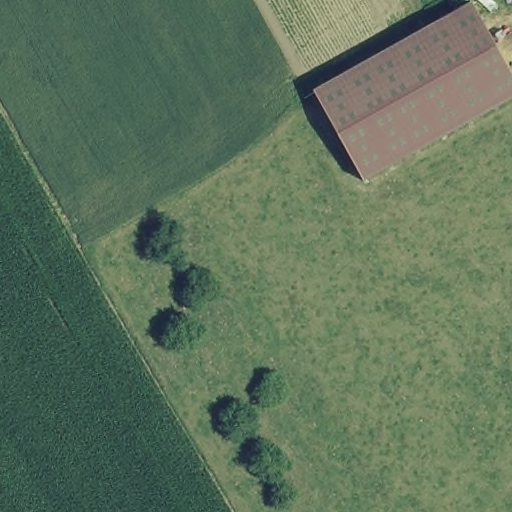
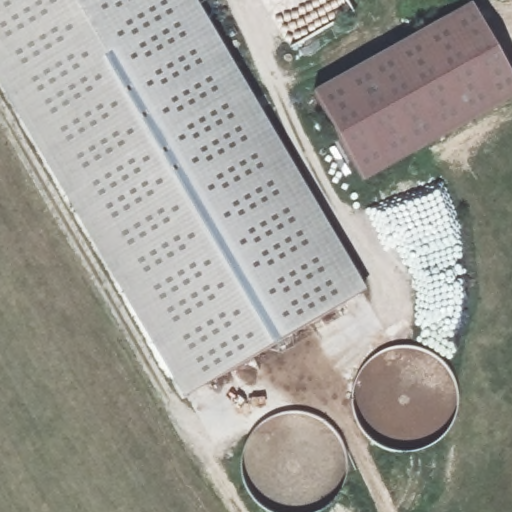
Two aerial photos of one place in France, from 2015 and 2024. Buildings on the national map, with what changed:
new [(191,0),(364,292),(187,396),(0,79),(0,0),(191,0)]
unchanged [(458,11),(469,4),(512,81),(512,95),(509,97),(452,129),(362,180),(312,93),(401,43),(458,11)]

